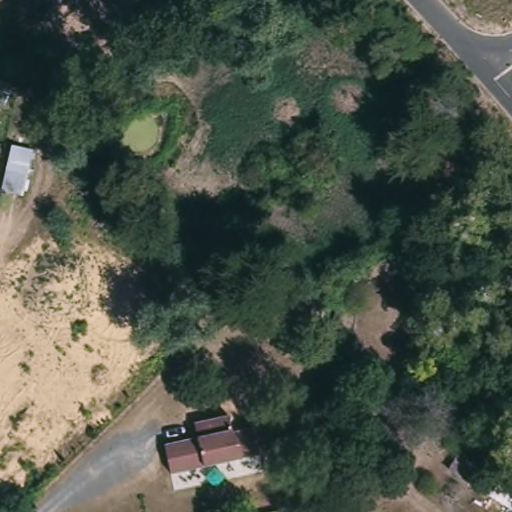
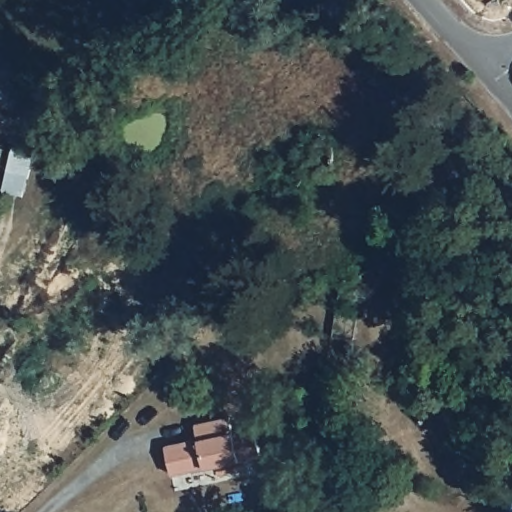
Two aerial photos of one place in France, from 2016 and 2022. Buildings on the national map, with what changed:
unchanged [(32,148),(25,174),(6,169),(12,144),(32,148)]
unchanged [(279,249),(281,279),(263,279),(262,251),(279,249)]
unchanged [(197,443),(194,427),(229,420),(232,436),(253,432),(259,457),(171,476),(165,449),(197,443)]

